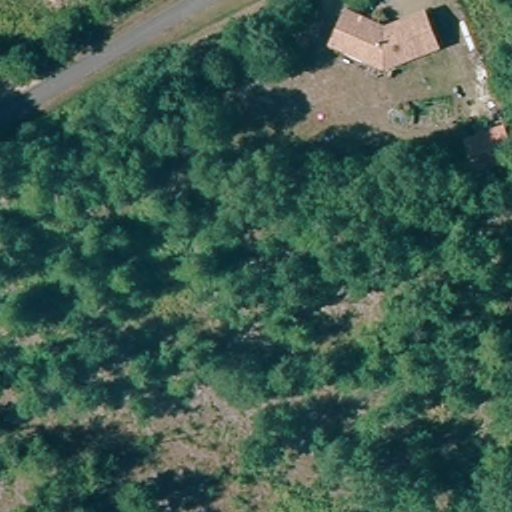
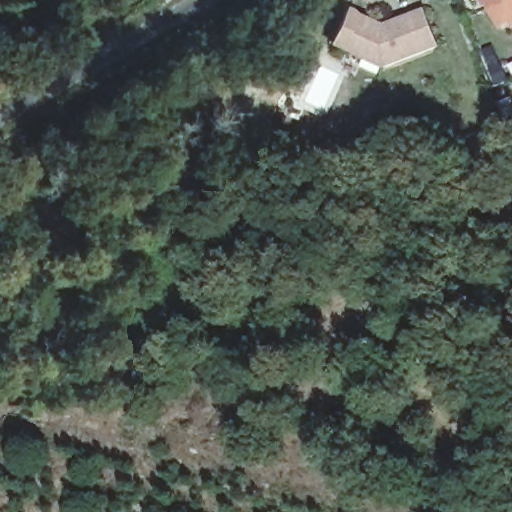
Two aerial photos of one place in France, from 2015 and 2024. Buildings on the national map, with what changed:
new [(499,27),(484,0),(512,0),(512,27),(499,27)]
unchanged [(336,49),(348,14),(396,30),(401,28),(404,20),(427,9),(443,43),(402,63),(390,68),(373,62),(336,49)]

